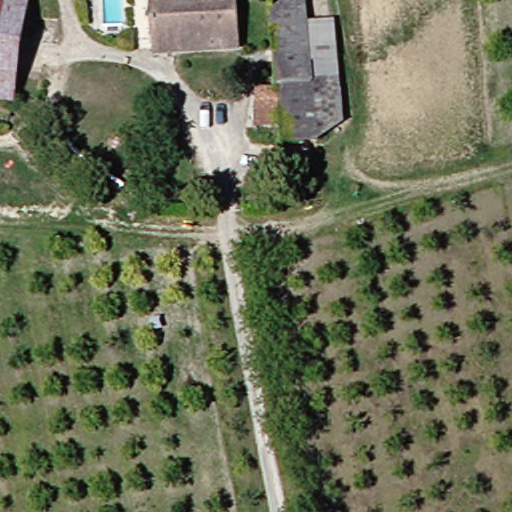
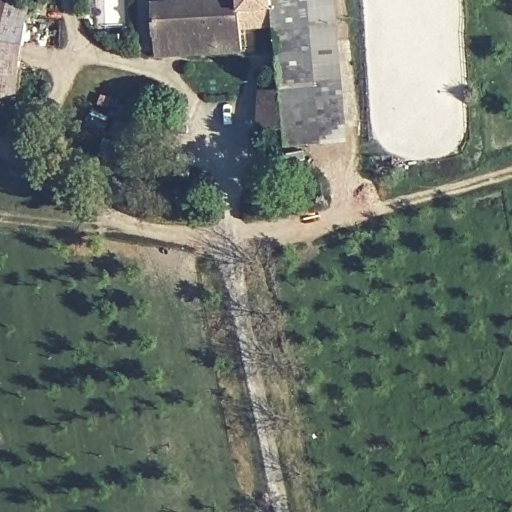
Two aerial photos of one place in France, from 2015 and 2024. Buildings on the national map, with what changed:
unchanged [(20,104),(0,101),(0,0),(7,0),(36,5),(20,104)]
unchanged [(223,0),(243,0),(247,54),(160,59),(156,5),(223,0)]
unchanged [(311,0),(320,82),(345,79),(349,128),(325,144),(290,149),(276,0),(311,0)]

